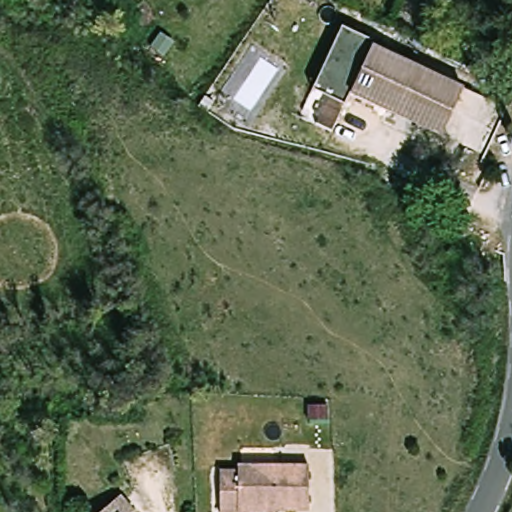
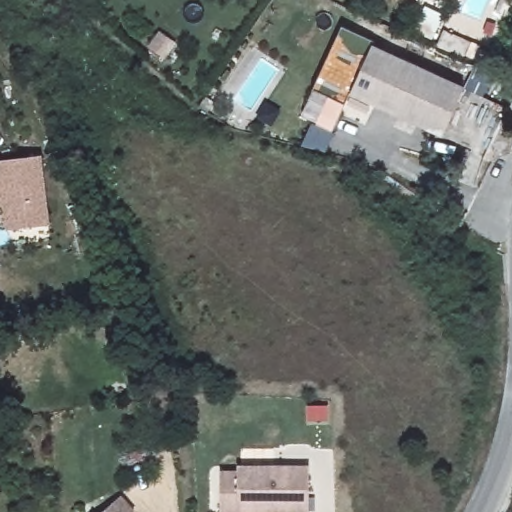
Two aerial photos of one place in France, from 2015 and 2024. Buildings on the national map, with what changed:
unchanged [(316,75),(340,22),(372,36),(370,42),(464,82),(443,130),(348,91),(344,100),(327,92),(310,85),(316,75)]
new [(45,223),(4,226),(2,204),(0,204),(0,161),(40,157),(45,223)]
unchanged [(239,509),(221,509),(220,468),(237,468),(236,462),(310,460),(311,505),(276,505),(276,508),(239,509)]
unchanged [(118,492),(132,508),(128,512),(95,512),(118,492)]

